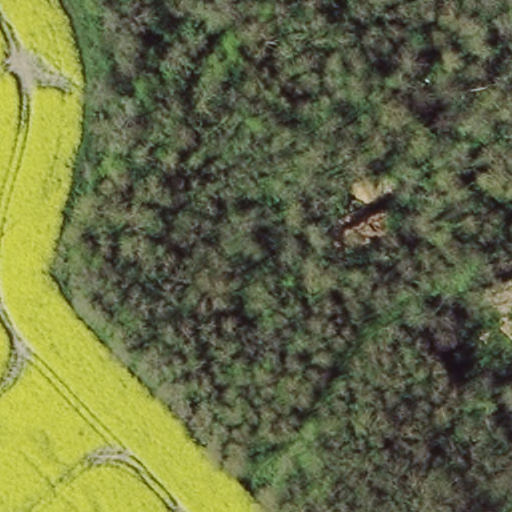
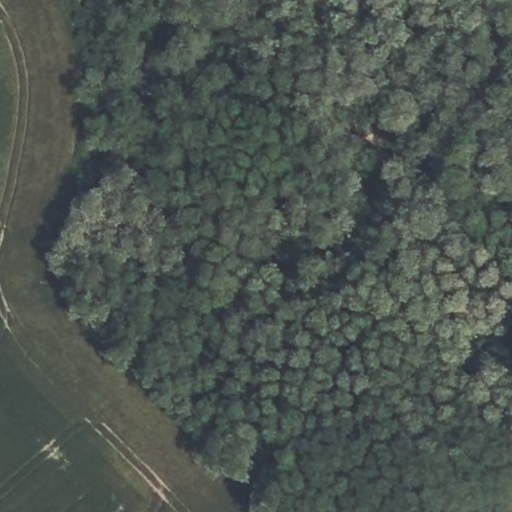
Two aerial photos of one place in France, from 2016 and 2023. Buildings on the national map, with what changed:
[]

